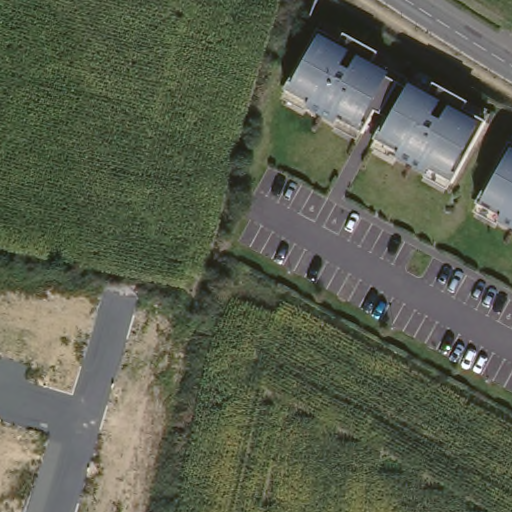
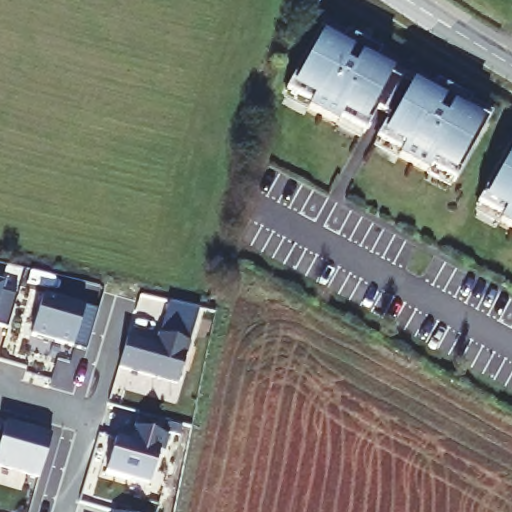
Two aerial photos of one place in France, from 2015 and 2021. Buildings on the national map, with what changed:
unchanged [(379,136),(386,119),(369,113),(365,123),(292,89),(321,29),(485,121),(450,174),(379,136)]
unchanged [(509,141),(512,143),(512,221),(480,203),(509,141)]
new [(1,290),(16,294),(6,328),(0,326),(0,280),(4,282),(1,290)]
new [(45,296),(86,308),(74,349),(33,337),(45,296)]
new [(128,338),(156,346),(160,334),(189,343),(177,384),(119,368),(128,338)]
new [(5,423),(51,436),(39,478),(0,467),(0,431),(3,432),(5,423)]
new [(111,441),(126,446),(130,431),(164,440),(159,456),(155,454),(145,489),(101,477),(111,441)]

